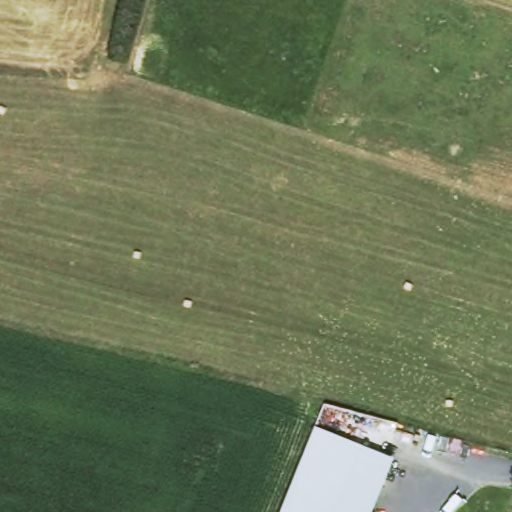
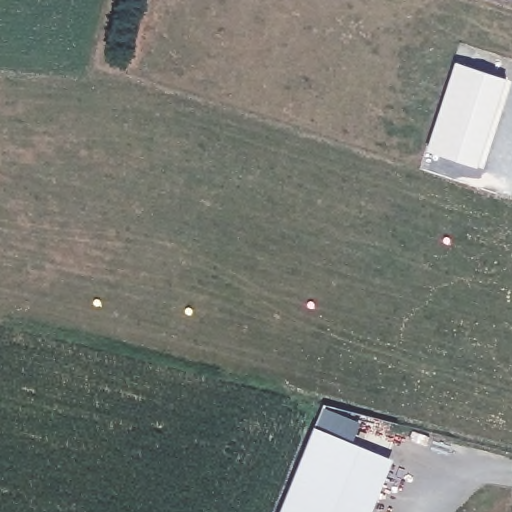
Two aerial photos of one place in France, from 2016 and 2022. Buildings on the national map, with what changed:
new [(429,151),(458,63),(508,79),(479,168),(429,151)]
unchanged [(283,504),(286,493),(309,433),(380,459),(389,463),(370,512),(279,512),(282,505),(283,504)]

